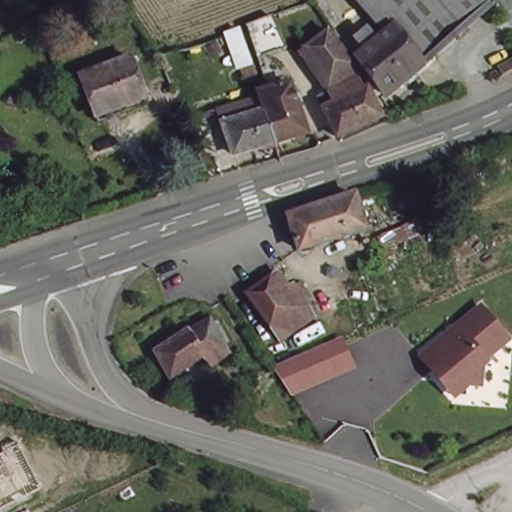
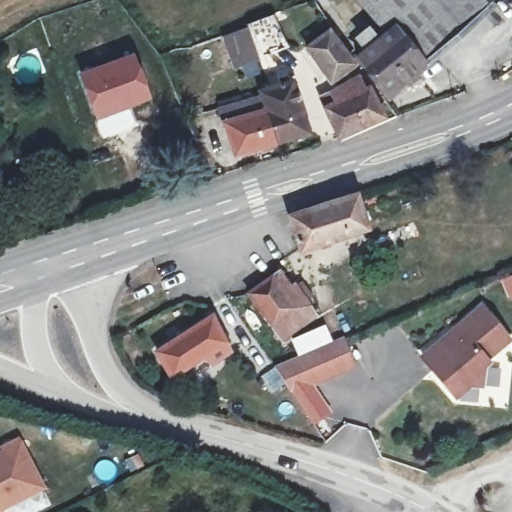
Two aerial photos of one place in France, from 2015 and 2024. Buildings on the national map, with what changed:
unchanged [(428,60),(394,25),(385,31),(361,0),(487,0),(492,5),(428,60)]
unchanged [(270,8),(270,10),(285,41),(256,52),(242,19),(245,18),(270,8)]
unchanged [(359,37),(370,29),(378,38),(385,31),(394,25),(428,60),(390,94),(359,55),(368,47),(359,37)]
unchanged [(308,47),(332,29),(356,63),(334,80),(308,47)]
unchanged [(123,104),(126,108),(96,120),(78,75),(129,55),(144,96),(123,104)]
unchanged [(366,87),(372,85),(387,115),(340,135),(325,107),(328,105),(323,97),(333,92),(361,78),(366,87)]
unchanged [(267,93),(265,90),(277,87),(298,81),(315,131),(283,141),(267,95),(267,93)]
unchanged [(283,141),(242,152),(225,107),(228,106),(232,105),(267,95),(283,141)]
unchanged [(292,209),(358,188),(370,221),(302,242),(295,219),(292,209)]
unchanged [(418,233),(383,248),(377,236),(412,220),(418,233)]
unchanged [(269,274),(281,292),(299,280),(310,296),(304,299),(313,313),(279,338),(245,291),(269,274)]
unchanged [(488,355),(490,358),(486,362),(484,381),(446,378),(423,352),(445,334),(454,335),(463,327),(460,322),(484,302),(512,335),(488,355)]
unchanged [(209,358),(200,350),(169,374),(155,349),(209,315),(227,349),(209,358)]
unchanged [(353,366),(294,393),(277,365),(343,338),(353,366)]
new [(0,512),(0,448),(0,445),(17,435),(45,487),(0,512)]

